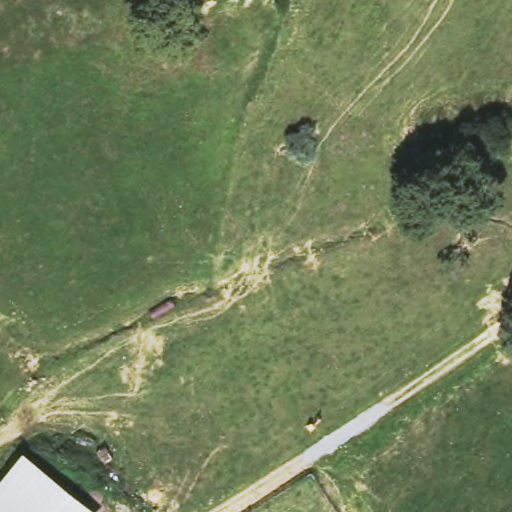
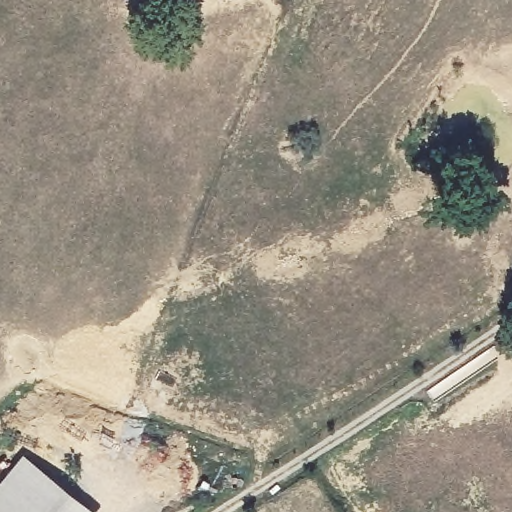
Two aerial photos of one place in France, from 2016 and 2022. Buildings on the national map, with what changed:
unchanged [(100,511),(99,512),(0,512),(0,477),(20,451),(100,511)]

